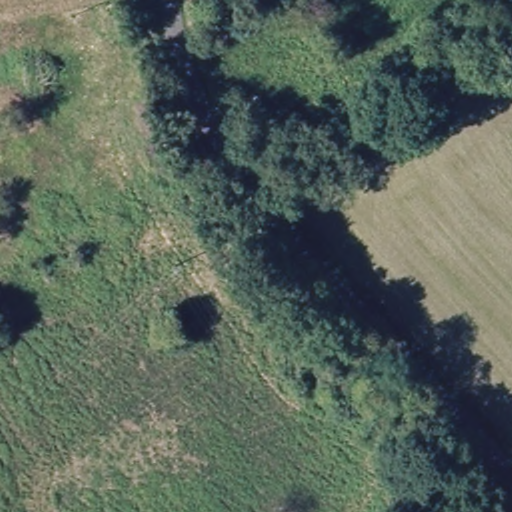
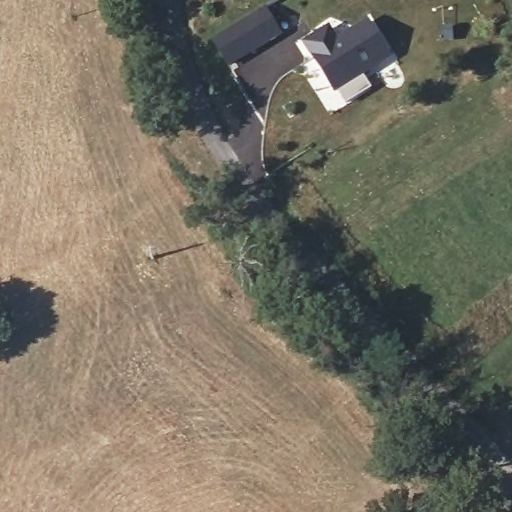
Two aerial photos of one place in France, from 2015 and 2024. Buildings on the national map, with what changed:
new [(264,13),(281,37),(257,53),(232,69),(217,45),(240,29),(264,13)]
new [(335,94),(302,43),(330,26),(337,38),(368,18),(392,57),(335,94)]

